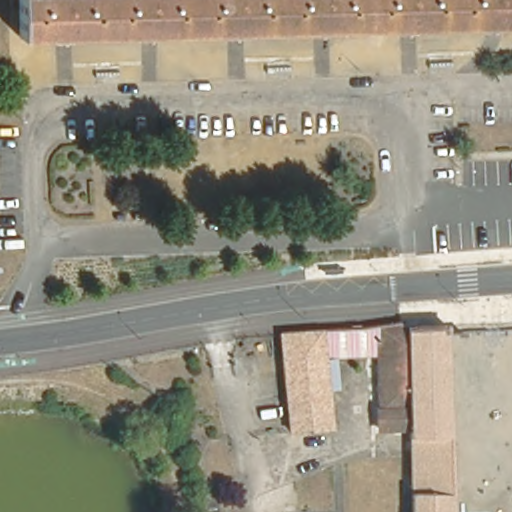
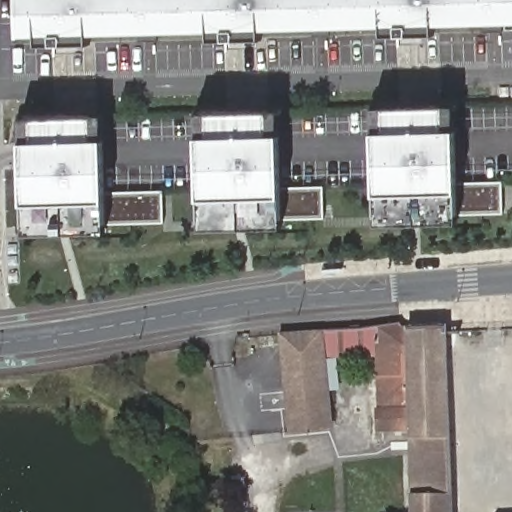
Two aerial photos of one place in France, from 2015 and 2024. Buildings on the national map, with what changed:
unchanged [(17,36),(17,0),(512,0),(512,24),(17,36)]
new [(376,226),(375,196),(373,134),(372,109),(453,107),(454,132),(455,184),(456,193),(456,215),(456,225),(376,226)]
new [(199,231),(199,200),(197,139),(197,113),(279,111),(280,136),(281,188),(281,198),(282,220),(282,230),(199,231)]
new [(23,235),(22,205),(22,143),(22,117),(104,116),(104,141),(106,192),(106,203),(106,225),(106,233),(23,235)]
new [(502,215),(456,215),(456,193),(455,184),(501,182),(502,215)]
new [(322,220),(282,220),(281,198),(281,188),(322,187),(322,220)]
new [(162,224),(106,225),(106,203),(106,192),(162,191),(162,224)]
unchanged [(448,512),(410,512),(410,505),(407,423),(374,424),(373,403),(376,402),(375,351),(338,352),(339,383),(323,385),(326,421),(285,424),(277,330),(277,327),(317,325),(352,323),(395,318),(402,323),(404,323),(442,322),(442,326),(448,512)]

